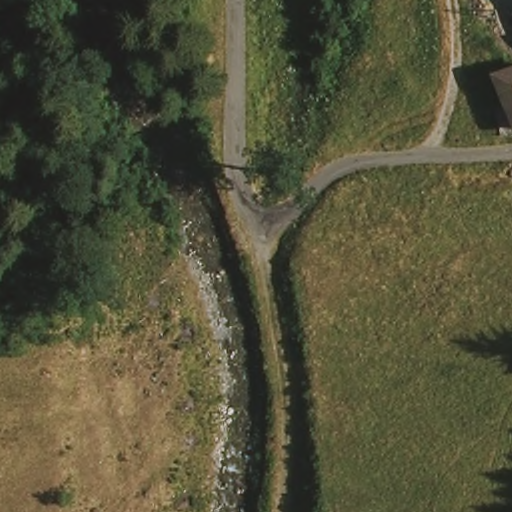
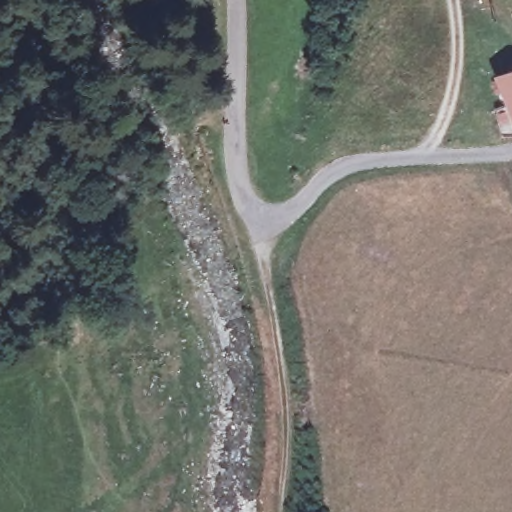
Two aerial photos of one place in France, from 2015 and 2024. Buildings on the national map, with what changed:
unchanged [(512,69),(512,112),(496,76),(512,69)]

